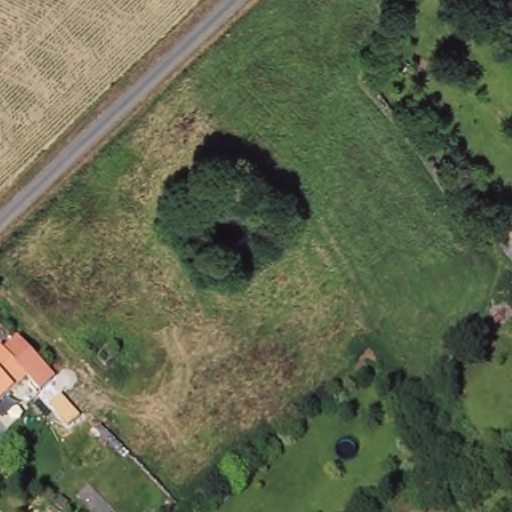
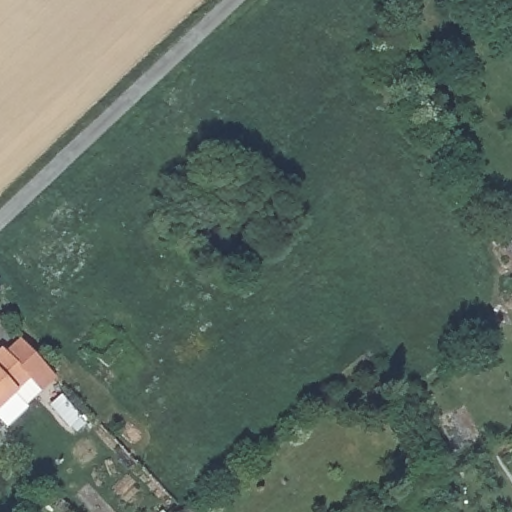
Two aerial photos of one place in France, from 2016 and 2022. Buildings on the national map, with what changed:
unchanged [(41,373),(48,380),(31,395),(26,389),(21,384),(0,403),(0,358),(14,344),(41,373)]

